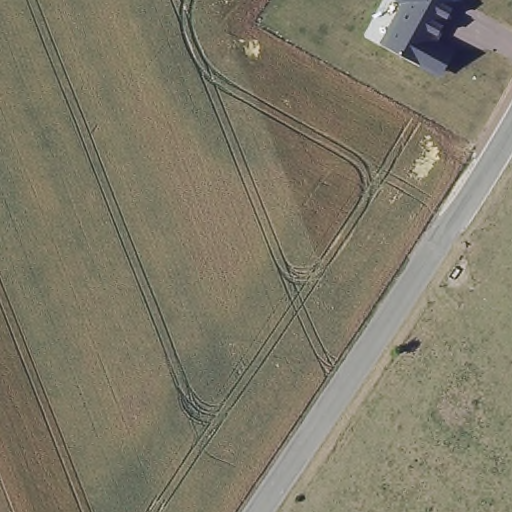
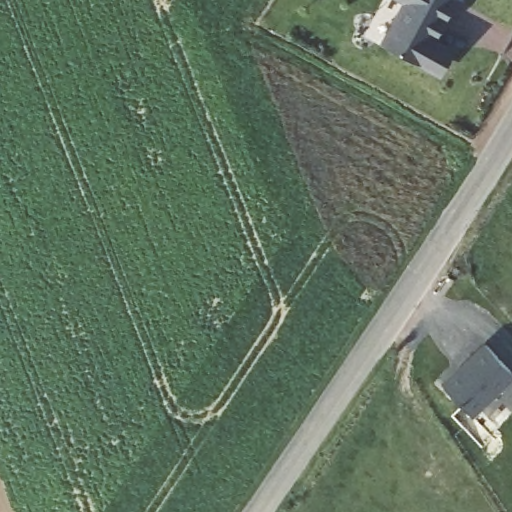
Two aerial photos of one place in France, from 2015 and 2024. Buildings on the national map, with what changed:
unchanged [(431,43),(446,51),(434,74),(433,75),(432,75),(430,73),(379,46),(397,11),(401,4),(396,1),(394,0),(452,0),(454,1),(431,43)]
new [(472,417),(442,382),(485,343),(512,371),(512,382),(472,417)]

